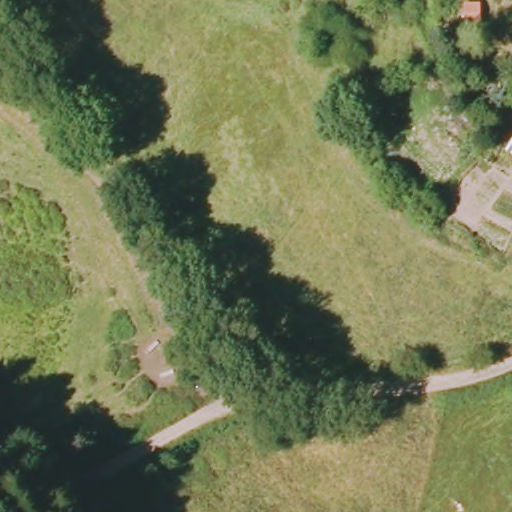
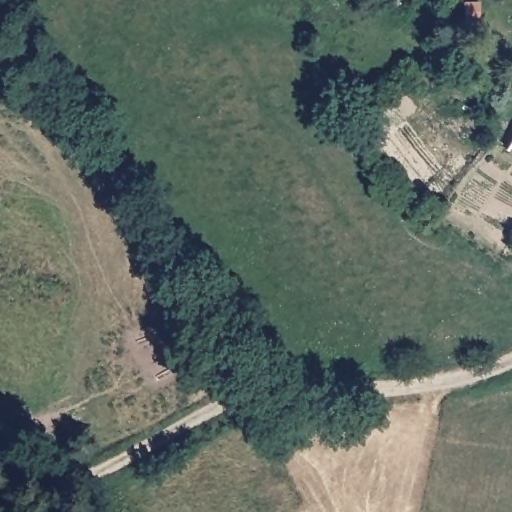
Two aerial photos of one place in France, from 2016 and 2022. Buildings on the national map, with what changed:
unchanged [(506,150),(512,143),(512,155),(506,150)]

